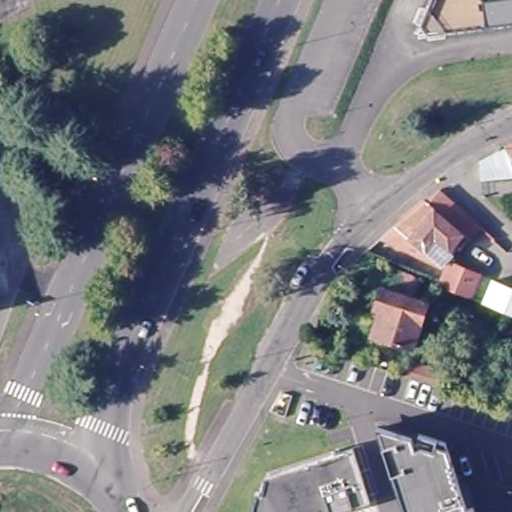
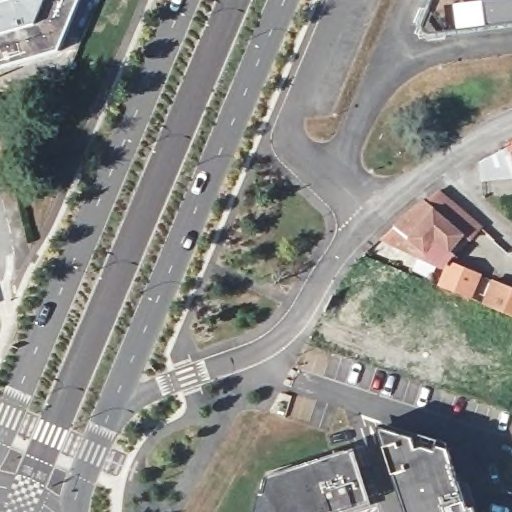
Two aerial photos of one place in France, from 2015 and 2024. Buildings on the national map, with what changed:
new [(0,67),(0,0),(80,0),(60,51),(0,67)]
unchanged [(416,25),(426,0),(512,0),(512,32),(429,42),(416,25)]
unchanged [(490,159),(501,152),(512,147),(512,174),(492,177),(490,159)]
unchanged [(382,236),(396,222),(420,202),(441,186),(476,219),(482,224),(470,237),(468,234),(443,263),(436,272),(382,236)]
unchanged [(421,297),(435,302),(433,310),(427,327),(437,331),(432,345),(422,342),(418,355),(379,343),(380,338),(373,336),(386,296),(360,287),(362,283),(354,280),(359,273),(371,261),(381,265),(375,280),(377,281),(381,272),(424,285),(421,297)]
unchanged [(486,303),(441,283),(450,261),(495,280),(512,287),(512,314),(506,312),(486,303)]
unchanged [(481,317),(464,311),(468,300),(485,306),(481,317)]
unchanged [(442,390),(408,378),(412,365),(442,375),(446,377),(442,390)]
unchanged [(512,399),(512,409),(509,408),(512,399)]
unchanged [(414,438),(417,448),(424,447),(436,450),(437,444),(450,447),(473,508),(479,506),(481,512),(407,512),(377,428),(414,438)]
unchanged [(258,495),(265,496),(268,480),(354,448),(373,501),(343,512),(255,512),(258,495)]

